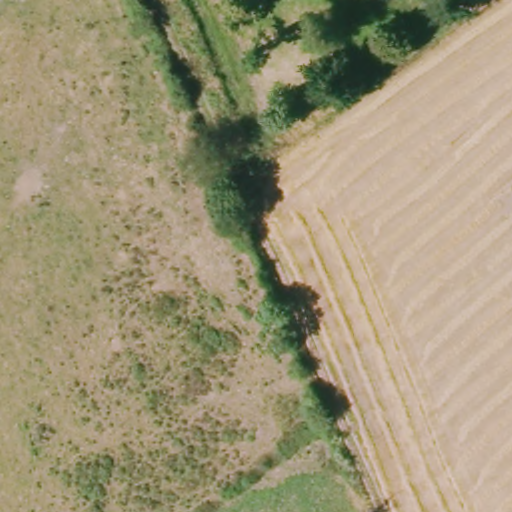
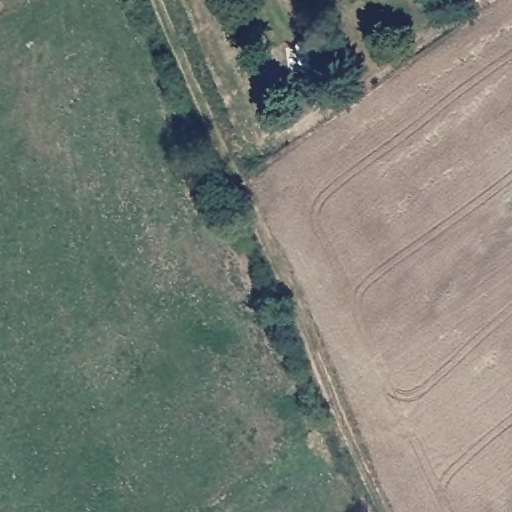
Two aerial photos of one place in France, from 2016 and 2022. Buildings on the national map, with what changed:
[]

